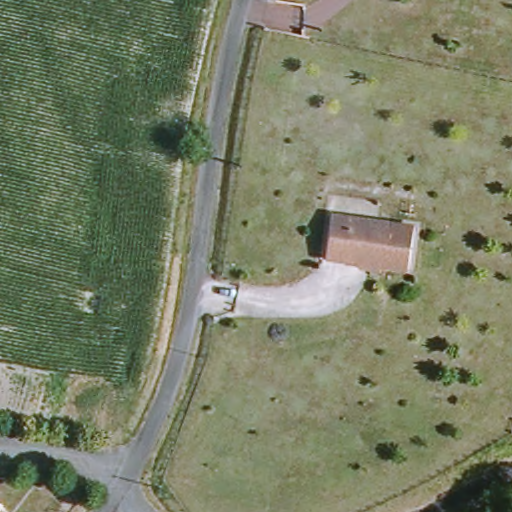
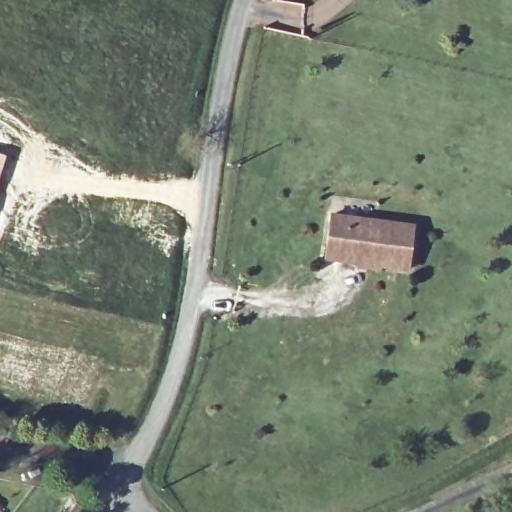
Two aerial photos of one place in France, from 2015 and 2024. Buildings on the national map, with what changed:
new [(7,155),(0,175),(0,153),(7,155)]
unchanged [(359,268),(355,262),(326,257),(332,215),(417,227),(410,270),(382,265),(381,271),(359,268)]

